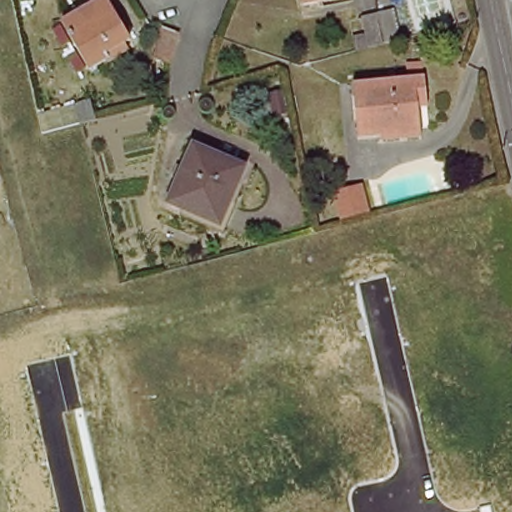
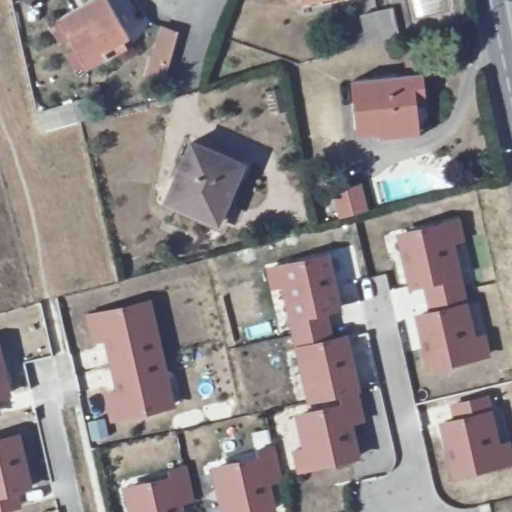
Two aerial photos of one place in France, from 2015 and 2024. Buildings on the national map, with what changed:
unchanged [(104,0),(128,39),(90,64),(62,21),(95,0),(104,0)]
unchanged [(303,0),(318,0),(304,4),(303,0)]
unchanged [(359,34),(372,30),(369,16),(383,13),(400,9),(406,40),(390,44),(362,50),(359,34)]
unchanged [(187,35),(177,54),(163,50),(170,28),(187,35)]
unchanged [(382,139),(382,134),(361,136),(355,81),(424,74),(427,120),(428,134),(382,139)]
unchanged [(97,95),(100,115),(82,119),(44,129),(40,110),(97,95)]
unchanged [(193,140),(244,161),(219,217),(169,196),(193,140)]
unchanged [(369,210),(345,216),(342,204),(339,192),(348,189),(363,185),(369,210)]
new [(463,276),(456,278),(430,284),(418,286),(406,234),(461,221),(465,240),(448,244),(455,242),(463,276)]
new [(295,283),(278,287),(274,269),(329,256),(341,309),(303,317),(295,283)]
new [(487,336),(491,355),(436,367),(424,315),(436,312),(433,298),(430,284),(463,276),(466,291),(470,305),(477,338),(487,336)]
new [(295,319),(287,285),(295,283),(303,317),(329,311),(332,326),(335,340),(347,338),(359,390),(321,399),(314,401),(302,348),(299,334),(295,319)]
new [(163,347),(156,349),(146,305),(153,303),(163,347)]
new [(132,417),(120,365),(108,313),(146,304),(156,348),(165,346),(167,354),(168,362),(160,364),(158,356),(170,408),(132,417)]
new [(11,395),(0,398),(0,347),(11,395)]
new [(167,362),(177,406),(170,407),(160,364),(167,362)]
new [(345,394),(359,390),(366,420),(352,424),(345,394)]
new [(112,395),(126,391),(132,417),(117,420),(112,395)]
new [(0,413),(0,404),(2,413),(0,413)]
new [(360,457),(305,470),(300,452),(317,448),(310,449),(302,415),(309,414),(348,405),(360,457)]
new [(449,423),(488,414),(494,412),(502,446),(496,447),(512,444),(512,463),(461,475),(449,423)]
new [(20,437),(32,489),(0,496),(0,441),(20,437)]
new [(276,446),(279,455),(264,459),(263,458),(261,450),(276,446)]
new [(226,467),(264,458),(276,510),(268,512),(236,512),(226,468),(226,467)]
new [(176,479),(176,478),(175,478),(173,470),(188,466),(190,475),(176,479)]
new [(219,469),(226,468),(236,512),(229,512),(219,469)]
new [(138,487),(176,478),(184,512),(144,512),(138,488),(138,487)]
new [(131,489),(138,488),(144,512),(136,512),(131,489)]
new [(23,507),(0,512),(0,496),(20,492),(23,507)]

